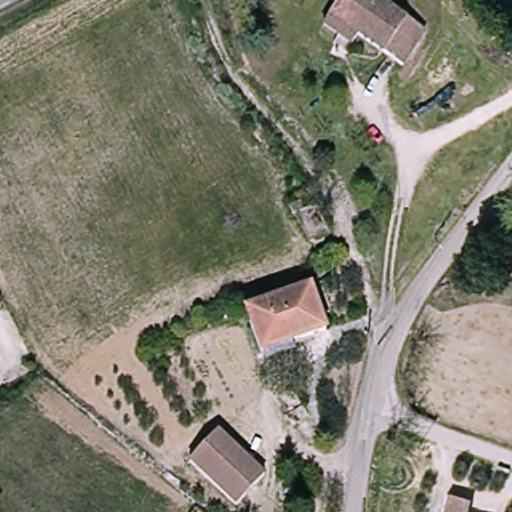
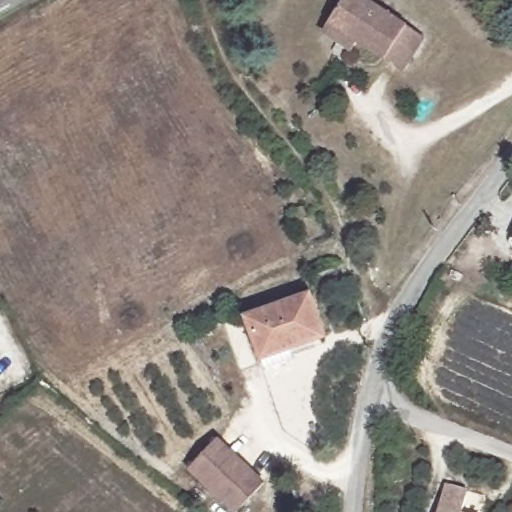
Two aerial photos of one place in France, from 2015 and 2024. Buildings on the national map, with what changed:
unchanged [(323,24),(341,0),(356,0),(416,43),(393,74),(323,24)]
unchanged [(324,338),(264,361),(247,320),(307,297),(324,338)]
unchanged [(266,483),(241,512),(232,512),(186,476),(216,443),(266,483)]
unchanged [(465,493),(459,512),(434,512),(442,486),(465,493)]

